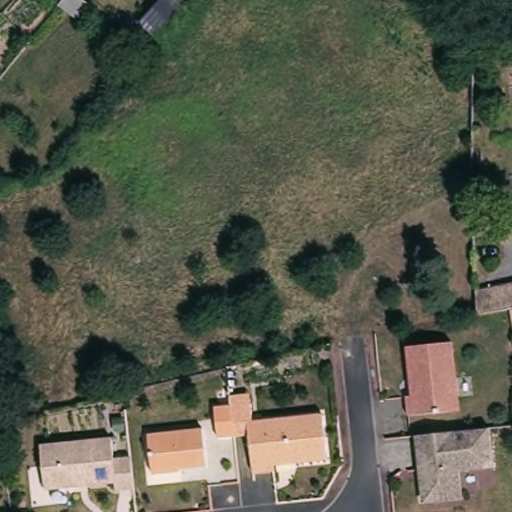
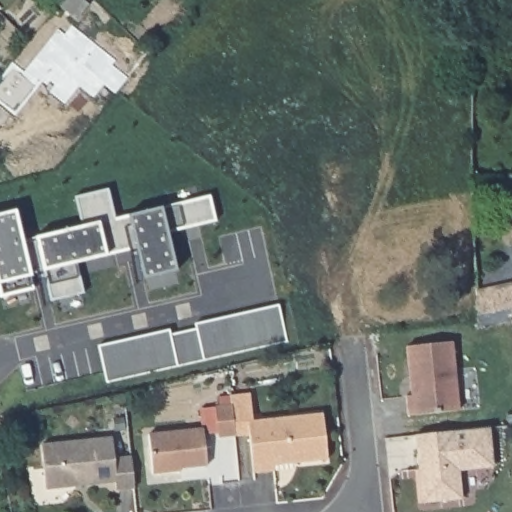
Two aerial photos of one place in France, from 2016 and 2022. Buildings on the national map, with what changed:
unchanged [(79,21),(61,5),(64,0),(84,0),(91,6),(79,21)]
new [(83,224),(76,195),(110,187),(117,216),(212,195),(217,221),(169,232),(177,270),(144,277),(137,247),(77,261),(85,291),(51,298),(45,271),(32,275),(37,298),(1,306),(0,304),(0,243),(23,237),(83,224)]
new [(23,237),(0,243),(0,211),(17,207),(23,237)]
unchanged [(507,309),(502,286),(512,284),(512,308),(507,309)]
new [(170,328),(171,333),(197,327),(196,323),(279,305),(287,342),(106,380),(99,343),(170,328)]
unchanged [(462,408),(412,413),(410,394),(416,393),(411,344),(455,340),(462,408)]
unchanged [(262,468),(258,436),(244,438),(227,440),(224,410),(240,407),(255,406),(257,417),(331,409),(336,455),(304,458),(282,460),(283,466),(262,468)]
unchanged [(211,461),(184,465),(184,466),(156,470),(152,430),(207,424),(211,461)]
unchanged [(499,465),(465,468),(468,496),(431,500),(428,481),(436,475),(435,467),(427,467),(423,433),(495,425),(499,465)]
unchanged [(137,477),(138,485),(120,487),(119,480),(50,486),(45,442),(116,435),(117,455),(135,453),(137,477)]

